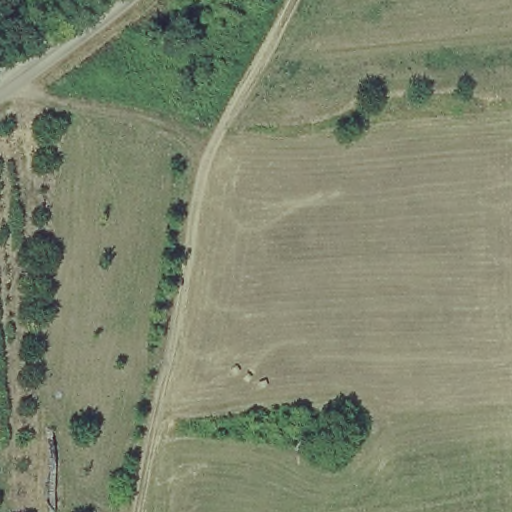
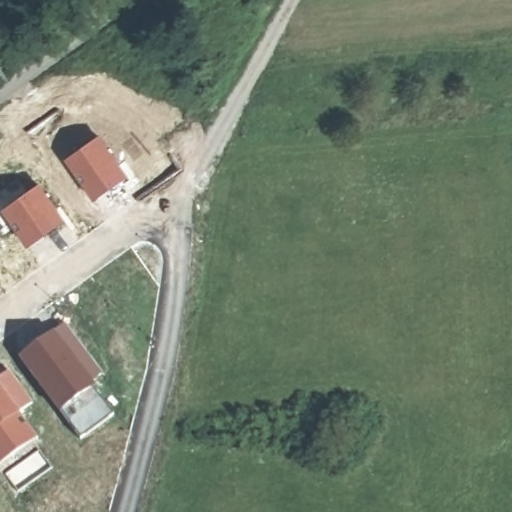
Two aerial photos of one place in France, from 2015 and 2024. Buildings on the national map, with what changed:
new [(99,134),(129,177),(94,201),(63,159),(99,134)]
new [(63,224),(30,247),(7,212),(41,189),(63,224)]
new [(109,388),(69,417),(22,352),(60,321),(109,388)]
new [(8,369),(33,403),(18,415),(37,440),(0,466),(0,374),(8,369)]

